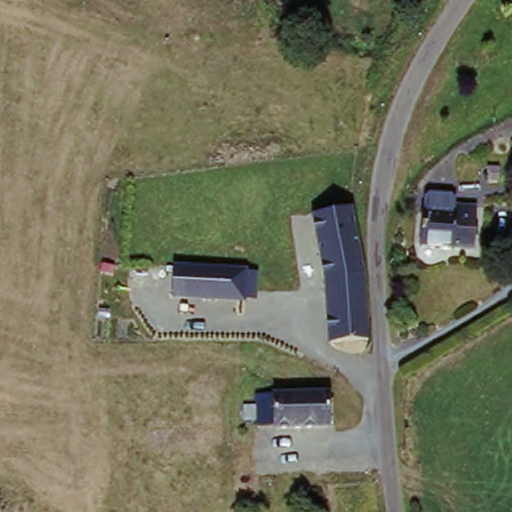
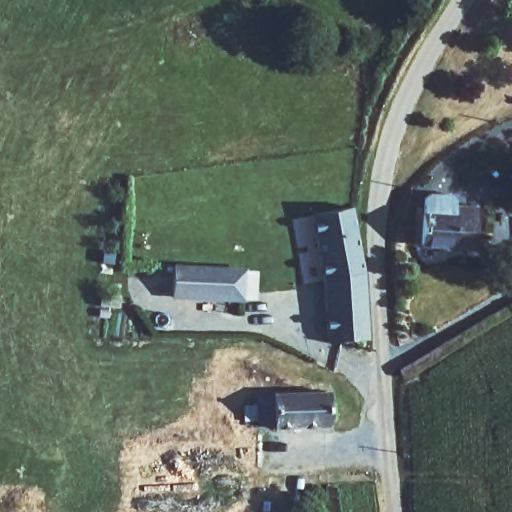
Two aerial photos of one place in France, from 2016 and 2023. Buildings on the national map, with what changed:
unchanged [(420,219),(458,222),(459,209),(474,211),(472,252),(417,250),(420,219)]
unchanged [(379,286),(381,314),(381,344),(340,349),(336,284),(323,220),(364,214),(379,286)]
unchanged [(179,269),(249,273),(248,308),(178,304),(179,269)]
unchanged [(287,428),(270,429),(269,399),(338,393),(342,432),(287,434),(287,428)]

